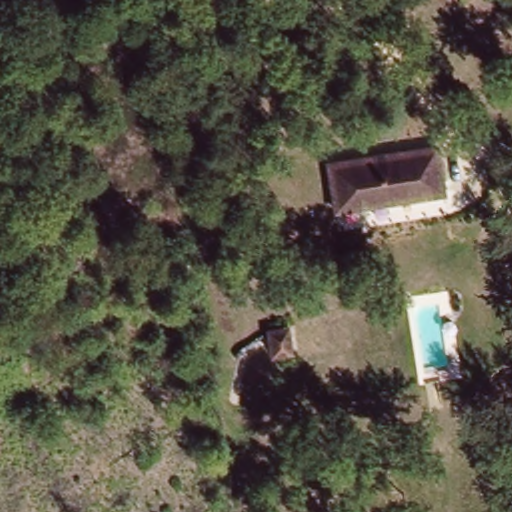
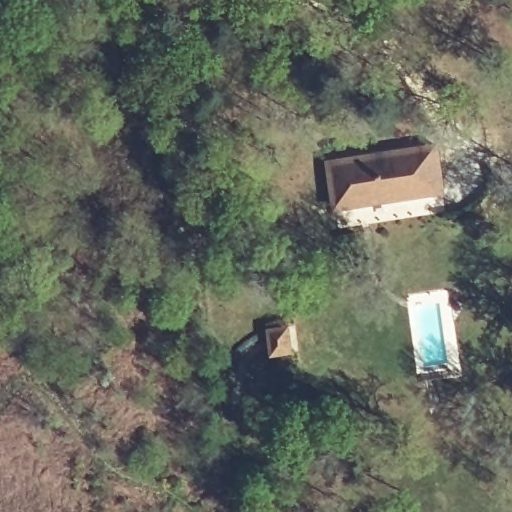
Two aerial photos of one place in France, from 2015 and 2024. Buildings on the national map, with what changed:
unchanged [(322,158),(434,144),(439,188),(328,202),(322,158)]
unchanged [(259,320),(279,317),(283,346),(264,349),(259,320)]

